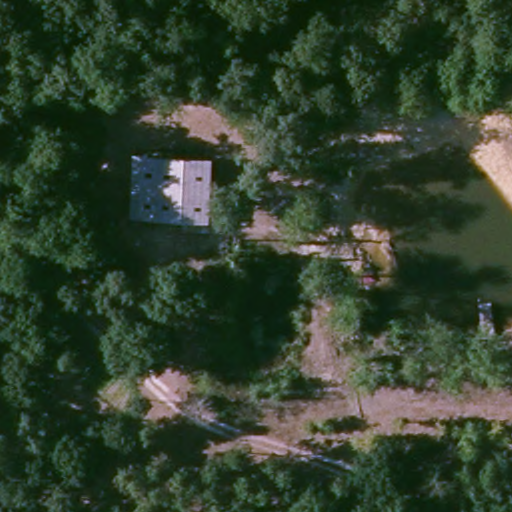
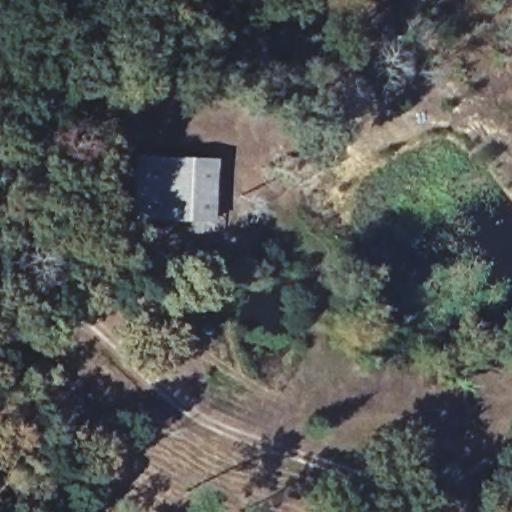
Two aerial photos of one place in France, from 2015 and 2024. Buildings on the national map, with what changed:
unchanged [(216,168),(215,234),(135,232),(136,165),(216,168)]

